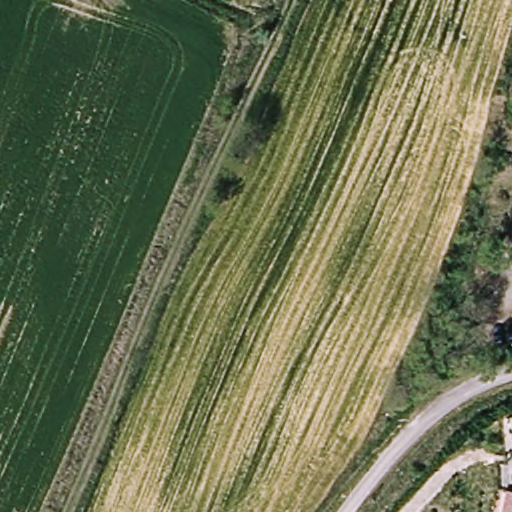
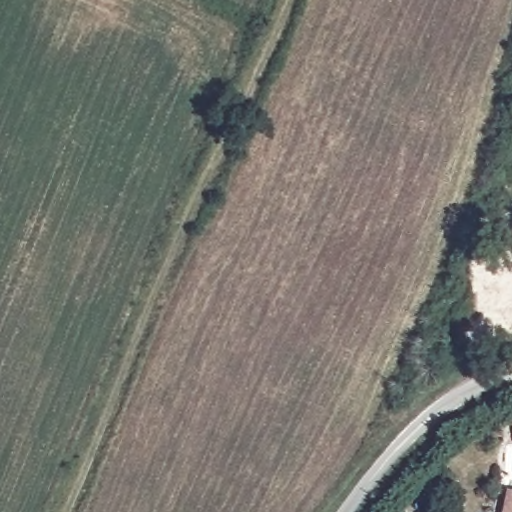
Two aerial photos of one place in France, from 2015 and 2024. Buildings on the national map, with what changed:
unchanged [(512,495),(512,512),(505,512),(504,496),(512,495)]

